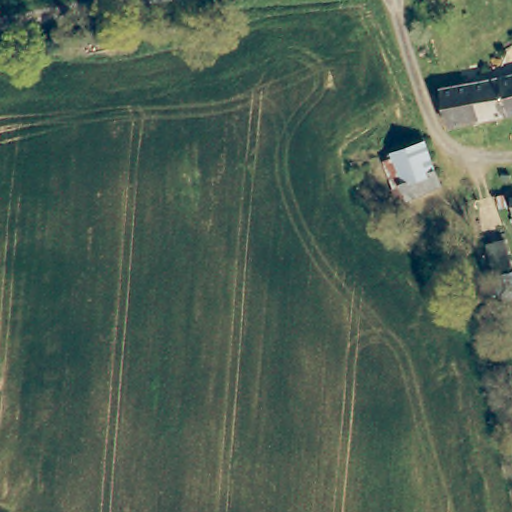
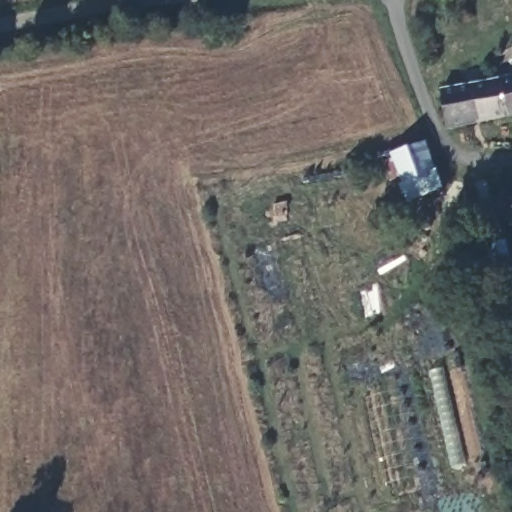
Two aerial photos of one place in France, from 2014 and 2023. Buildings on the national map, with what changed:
unchanged [(512,72),(512,115),(505,117),(495,76),(512,72)]
unchanged [(505,117),(474,124),(467,82),(495,76),(505,117)]
unchanged [(437,89),(467,82),(474,124),(446,130),(437,89)]
unchanged [(442,188),(408,199),(403,187),(395,189),(386,164),(392,161),(391,157),(423,143),(442,188)]
unchanged [(510,268),(496,274),(485,246),(497,240),(510,268)]

